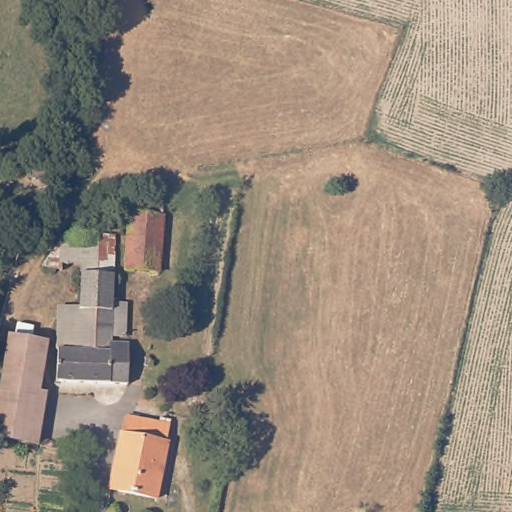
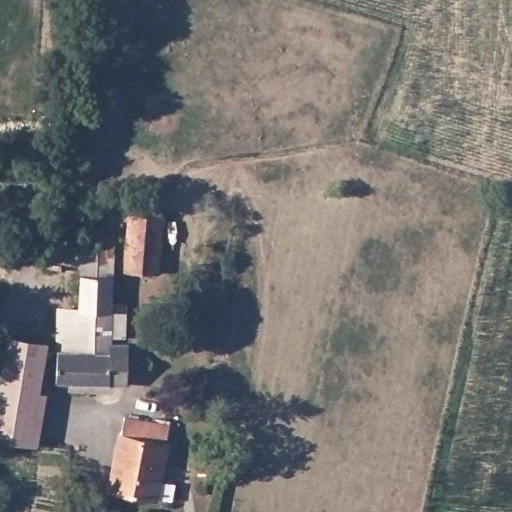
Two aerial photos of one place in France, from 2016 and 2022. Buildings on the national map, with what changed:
unchanged [(136,212),(170,215),(164,274),(128,270),(136,212)]
unchanged [(86,322),(86,267),(70,265),(69,274),(50,267),(70,239),(75,240),(76,230),(89,230),(89,236),(122,236),(117,302),(131,302),(131,337),(116,337),(114,362),(120,361),(122,344),(133,345),(131,385),(63,381),(64,349),(65,321),(86,322)]
unchanged [(25,443),(0,438),(0,369),(5,336),(35,341),(28,392),(34,394),(27,435),(25,443)]
unchanged [(122,425),(144,429),(167,434),(164,449),(169,450),(160,507),(150,505),(109,498),(119,442),(122,425)]

